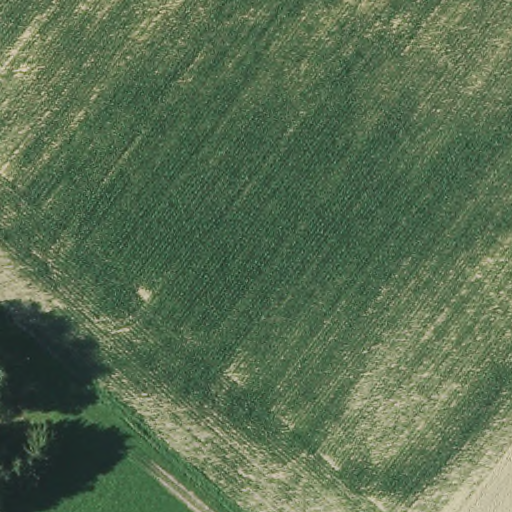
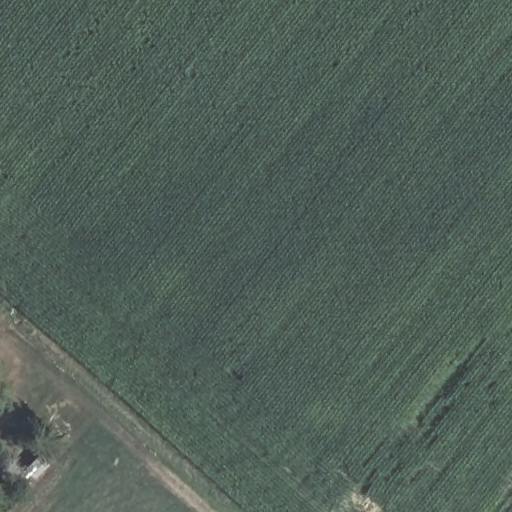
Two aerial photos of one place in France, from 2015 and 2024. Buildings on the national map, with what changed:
unchanged [(40,408),(39,444),(21,444),(23,408),(40,408)]

